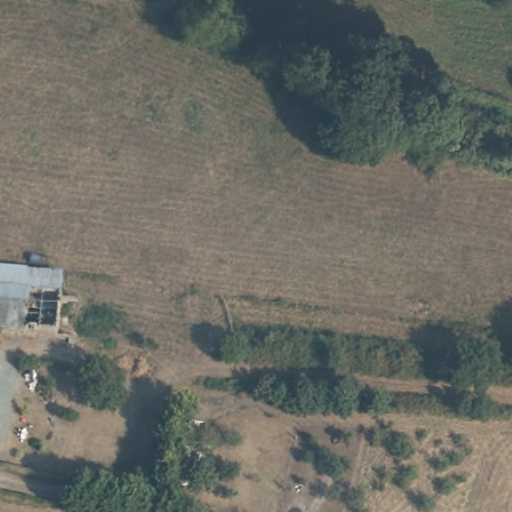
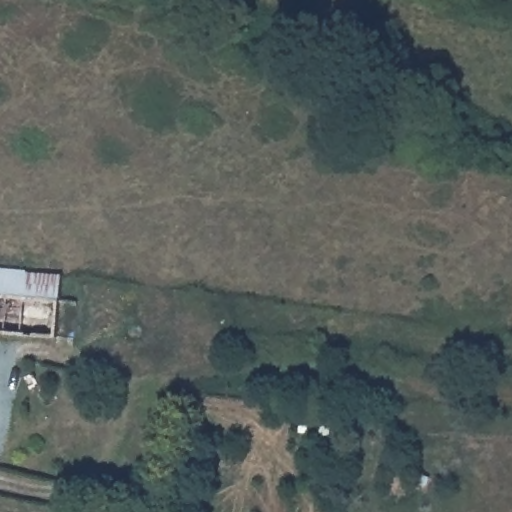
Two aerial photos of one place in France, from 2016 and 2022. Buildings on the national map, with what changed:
unchanged [(63,267),(62,292),(77,294),(74,331),(0,326),(0,263),(63,267)]

